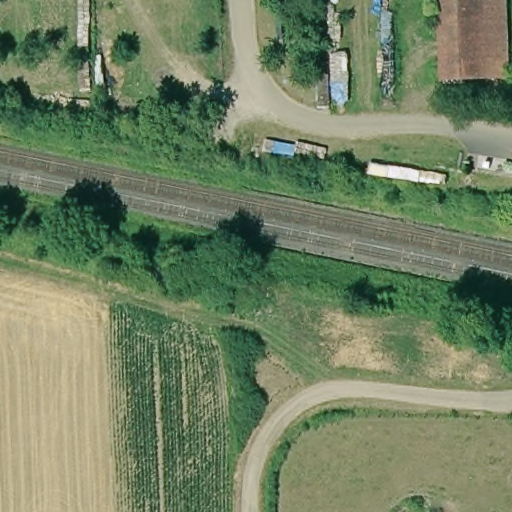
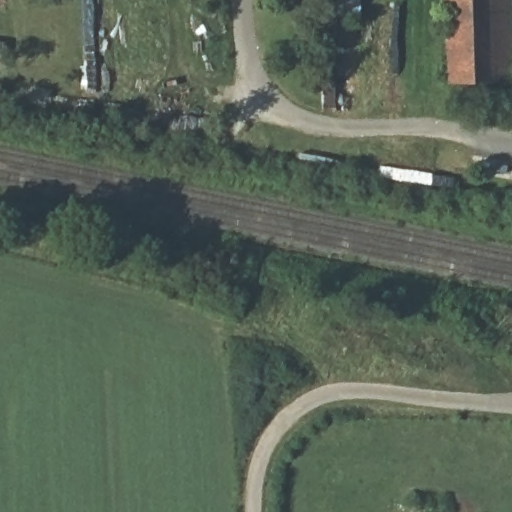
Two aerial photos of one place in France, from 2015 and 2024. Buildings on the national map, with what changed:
unchanged [(434,0),(504,0),(508,81),(439,84),(434,0)]

